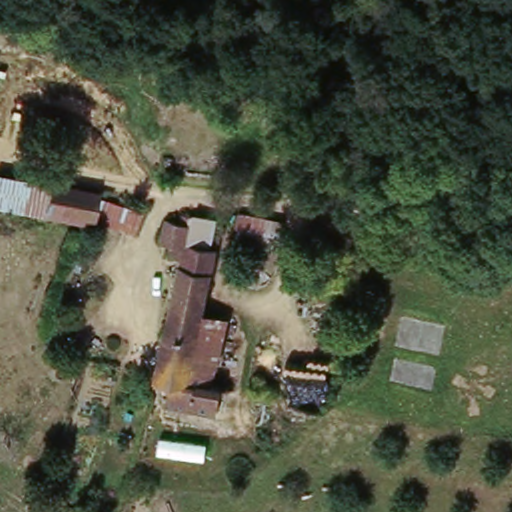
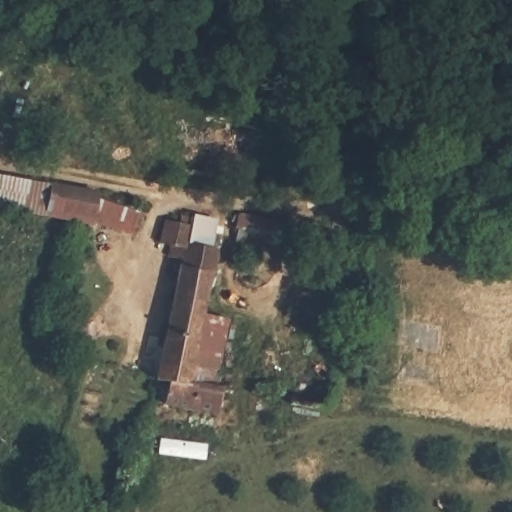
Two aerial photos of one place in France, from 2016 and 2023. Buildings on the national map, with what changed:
unchanged [(134,50),(157,52),(159,68),(134,66),(134,50)]
unchanged [(0,206),(0,174),(102,189),(102,194),(112,199),(147,213),(141,234),(100,220),(99,220),(0,206)]
unchanged [(177,258),(159,254),(161,238),(152,237),(156,214),(182,219),(184,211),(192,213),(188,239),(210,243),(209,249),(215,252),(204,323),(194,385),(222,390),(234,391),(231,414),(171,405),(173,384),(161,383),(162,374),(177,258)]
unchanged [(265,217),(260,243),(238,239),(242,213),(265,217)]
unchanged [(232,327),(222,390),(194,385),(204,323),(232,327)]

